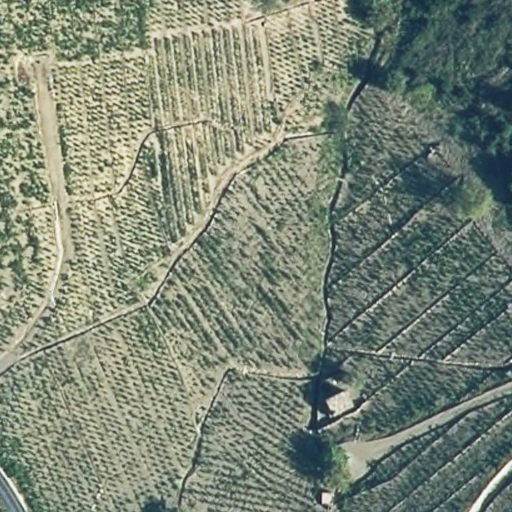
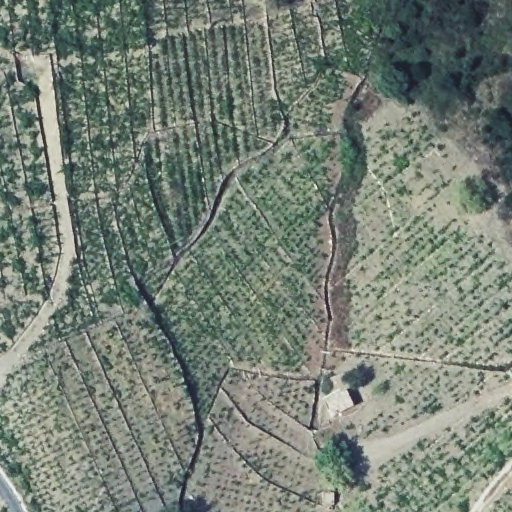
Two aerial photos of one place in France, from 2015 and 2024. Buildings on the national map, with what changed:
unchanged [(355,409),(336,422),(326,401),(349,393),(355,409)]

